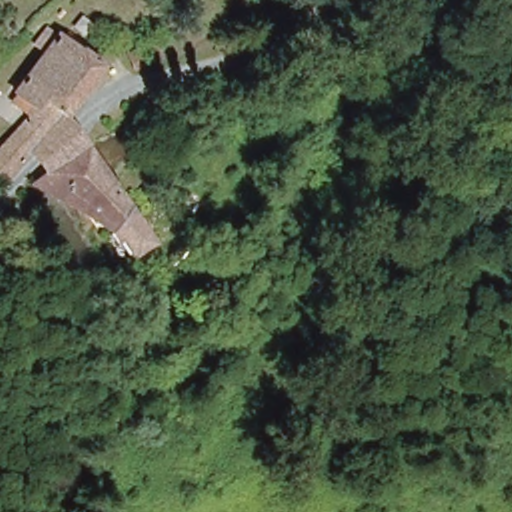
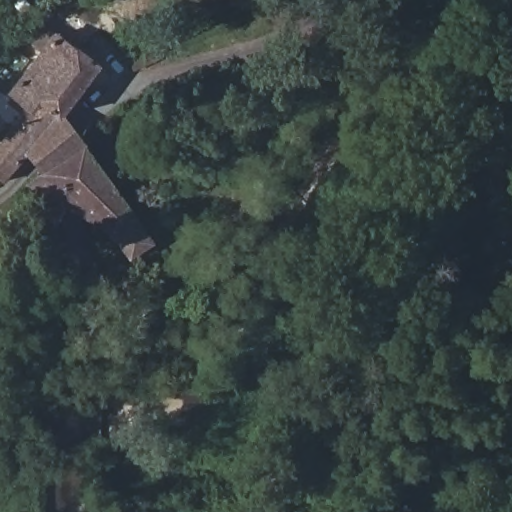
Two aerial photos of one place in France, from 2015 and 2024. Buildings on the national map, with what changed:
unchanged [(67,115),(63,111),(33,151),(10,179),(2,173),(1,172),(0,171),(0,150),(37,102),(17,87),(45,51),(35,42),(49,26),(60,34),(62,31),(105,65),(67,115)]
unchanged [(121,181),(144,214),(127,230),(107,215),(60,180),(48,170),(51,167),(33,151),(63,111),(67,115),(86,139),(103,158),(121,181)]

